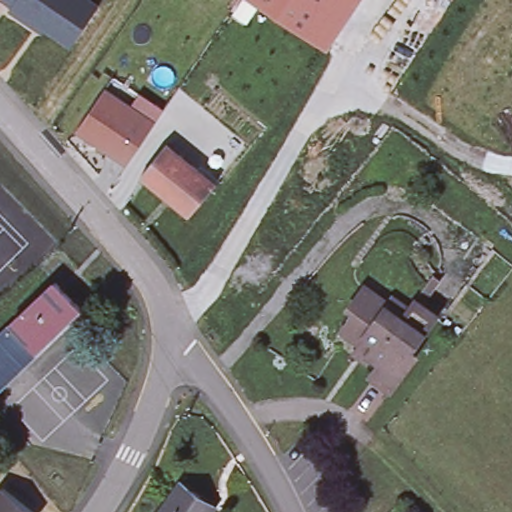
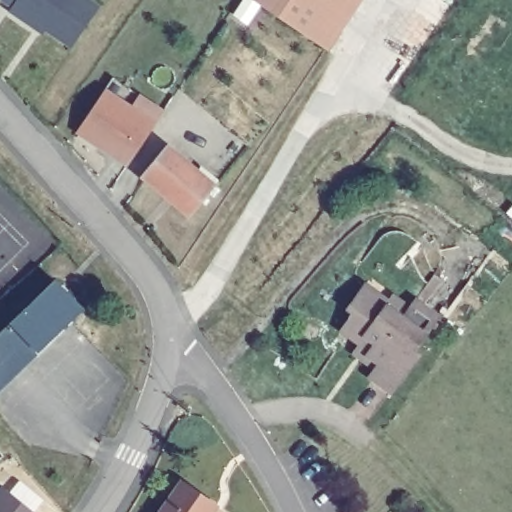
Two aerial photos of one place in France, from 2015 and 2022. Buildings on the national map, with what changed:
unchanged [(72,48),(44,25),(45,24),(38,19),(35,22),(28,24),(8,7),(9,5),(2,0),(86,0),(99,9),(72,48)]
unchanged [(251,19),(234,8),(236,6),(226,0),(240,0),(263,0),(251,19)]
unchanged [(312,30),(266,0),(339,0),(318,34),(312,30)]
unchanged [(157,124),(130,165),(79,132),(106,91),(157,124)]
unchanged [(139,176),(165,147),(206,182),(213,188),(188,219),(184,215),(139,176)]
unchanged [(58,280),(84,307),(38,351),(12,325),(58,280)]
unchanged [(344,302),(361,281),(386,300),(384,304),(399,315),(411,299),(431,315),(404,350),(411,355),(387,387),(367,372),(376,360),(365,352),(368,348),(339,326),(353,308),(344,302)]
unchanged [(0,388),(0,336),(12,325),(38,351),(0,388)]
unchanged [(180,480),(211,505),(206,511),(207,512),(155,512),(180,480)]
unchanged [(0,493),(4,487),(35,512),(0,512),(0,493)]

